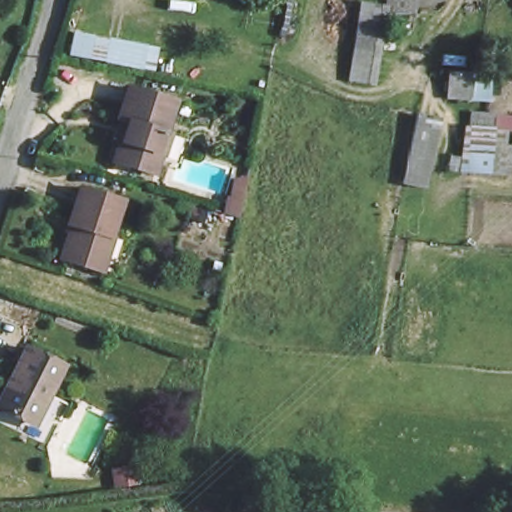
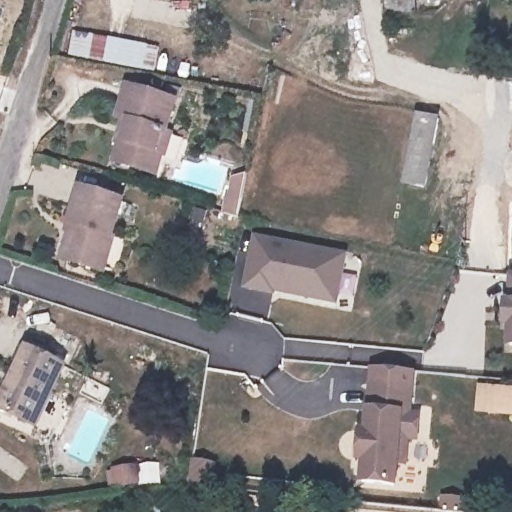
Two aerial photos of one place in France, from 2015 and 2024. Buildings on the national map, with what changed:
unchanged [(388,8),(388,0),(409,0),(409,8),(388,8)]
unchanged [(353,24),(359,25),(376,26),(370,82),(347,80),(348,71),(353,24)]
unchanged [(457,70),(434,66),(440,40),(459,44),(457,70)]
unchanged [(162,155),(156,177),(115,163),(121,143),(128,144),(132,133),(123,128),(125,120),(117,116),(127,90),(170,106),(164,135),(167,136),(162,155)]
unchanged [(512,114),(512,130),(499,129),(495,175),(464,176),(469,110),(512,114)]
unchanged [(438,118),(427,185),(409,183),(403,183),(414,115),(417,115),(438,118)]
unchanged [(91,269),(57,259),(69,227),(63,224),(77,185),(123,202),(110,240),(99,272),(91,269)]
new [(274,295),(242,289),(253,235),(347,253),(337,305),(274,293),(274,295)]
new [(506,347),(507,326),(502,326),(503,298),(507,299),(508,272),(512,272),(512,347),(506,347)]
unchanged [(54,397),(48,394),(33,424),(0,408),(0,406),(32,347),(69,366),(54,397)]
new [(355,432),(362,433),(366,385),(407,389),(404,415),(414,416),(412,439),(402,438),(400,464),(392,463),(390,485),(357,482),(359,460),(353,459),(355,432)]

